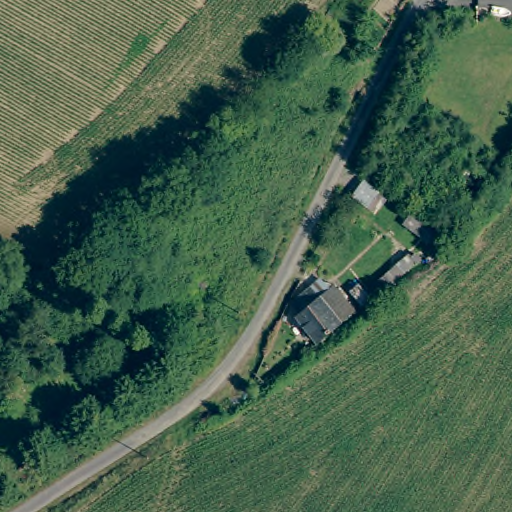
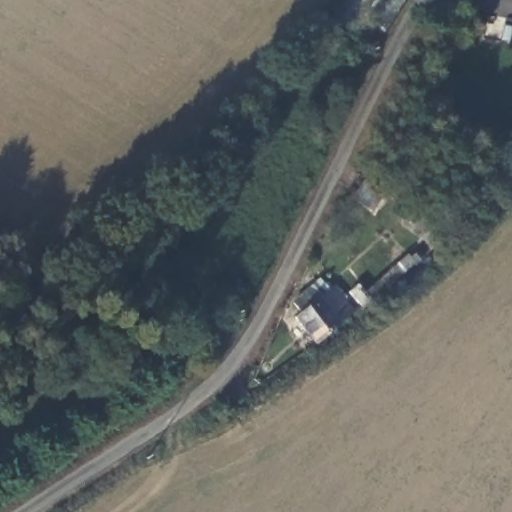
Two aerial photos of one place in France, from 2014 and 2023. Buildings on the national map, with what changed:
unchanged [(321,352),(301,329),(305,325),(297,315),(313,302),(321,311),(335,301),(356,325),(321,352)]

